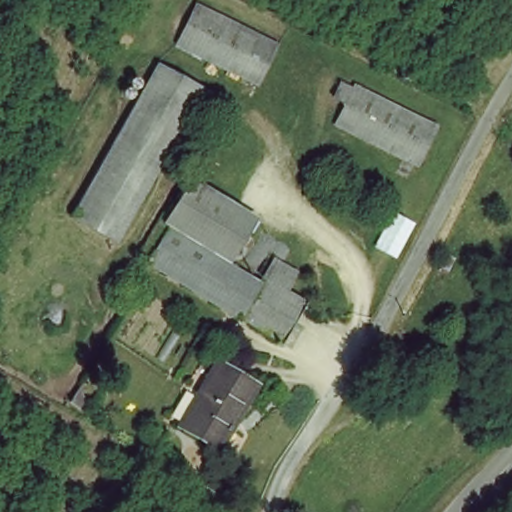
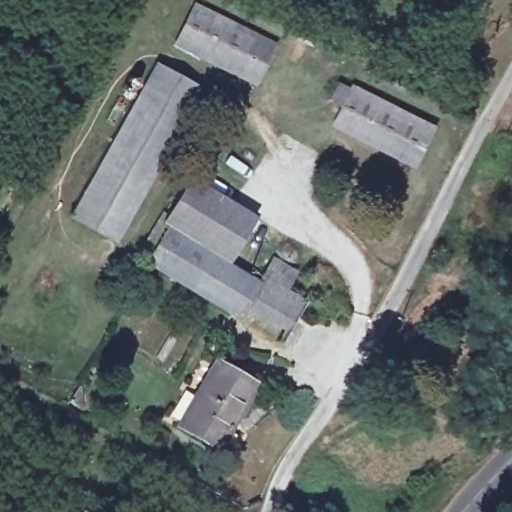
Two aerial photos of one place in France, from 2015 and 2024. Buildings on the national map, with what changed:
unchanged [(175,44),(196,4),(276,45),(255,85),(175,44)]
unchanged [(155,63),(199,87),(187,108),(142,84),(155,63)]
unchanged [(168,142),(142,189),(113,242),(70,218),(91,179),(125,117),(142,84),(187,108),(168,142)]
unchanged [(331,126),(353,86),(430,125),(410,166),(331,126)]
unchanged [(187,174),(252,213),(231,251),(226,259),(242,268),(231,289),(223,303),(146,260),(150,254),(140,247),(156,218),(160,220),(168,207),(187,174)]
unchanged [(280,337),(223,303),(231,289),(242,268),(258,277),(260,274),(266,263),(270,256),(292,268),(282,286),(303,298),(280,337)]
unchanged [(207,444),(175,426),(213,358),(252,381),(231,418),(215,448),(207,444)]

